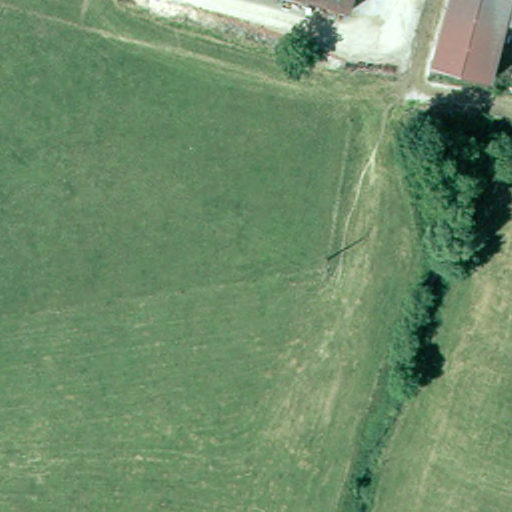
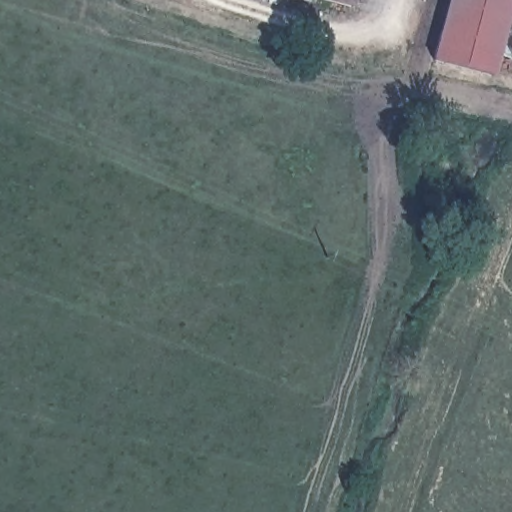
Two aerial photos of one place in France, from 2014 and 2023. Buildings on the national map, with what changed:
unchanged [(354,0),(353,2),(342,0),(354,0)]
unchanged [(431,58),(447,0),(509,0),(489,74),(431,58)]

